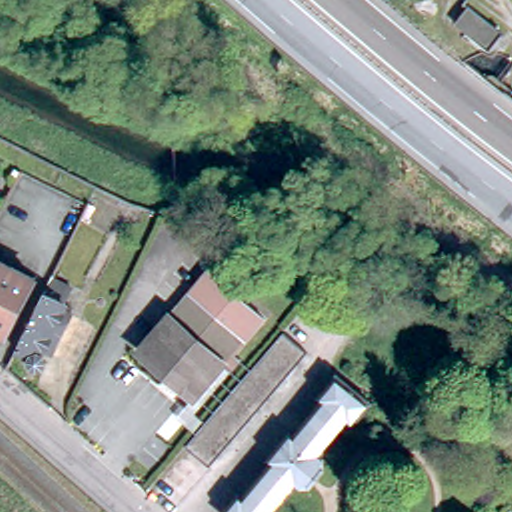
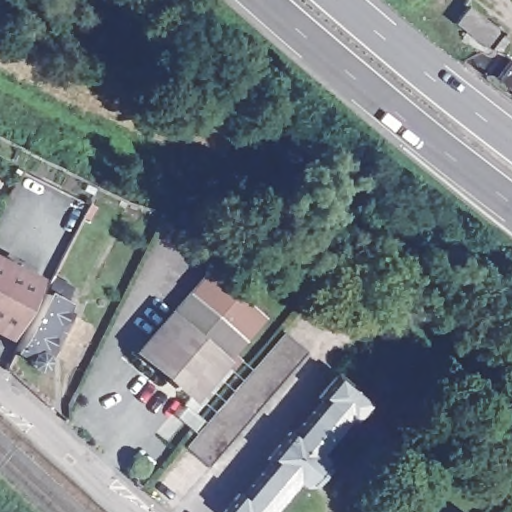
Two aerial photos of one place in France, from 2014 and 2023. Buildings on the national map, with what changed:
unchanged [(500,31),(487,48),(469,33),(453,21),(457,15),(466,4),(500,31)]
unchanged [(33,278),(3,337),(0,336),(0,260),(33,278)]
unchanged [(193,292),(212,270),(263,314),(243,338),(193,292)]
unchanged [(75,314),(54,357),(47,353),(44,360),(47,365),(44,371),(42,372),(38,372),(35,370),(33,368),(33,365),(35,363),(18,355),(22,347),(34,323),(46,300),(47,298),(54,284),(77,294),(69,308),(68,310),(75,314)]
unchanged [(169,317),(193,292),(243,338),(222,363),(169,317)]
unchanged [(169,317),(222,363),(192,396),(140,350),(169,317)]
unchanged [(204,424),(212,413),(223,402),(232,391),(242,379),(252,368),(262,356),(272,345),(282,331),(307,352),(295,366),(285,377),(275,388),(265,399),(255,410),(245,422),(235,433),(225,444),(215,455),(206,466),(185,447),(194,435),(204,424)]
unchanged [(269,462),(265,459),(289,432),(292,435),(322,400),(319,396),(337,375),(370,403),(352,424),(349,421),(321,453),(325,456),(322,468),(309,485),(300,487),(295,484),(271,512),(221,512),(237,492),(240,495),(269,462)]

